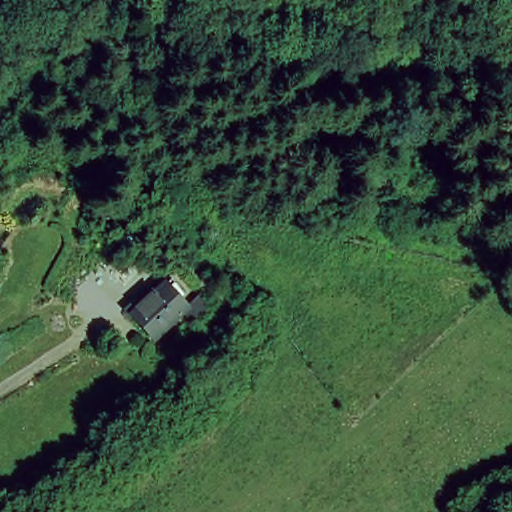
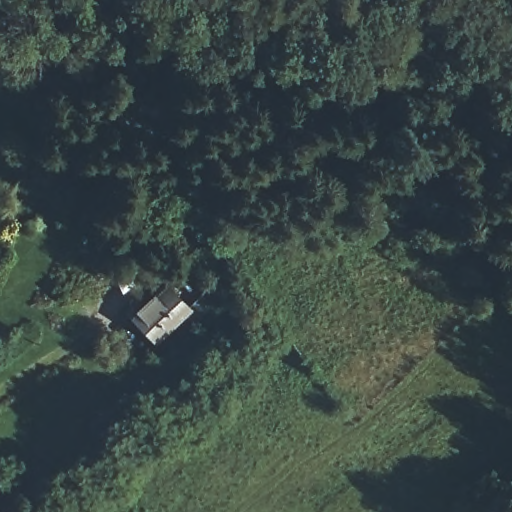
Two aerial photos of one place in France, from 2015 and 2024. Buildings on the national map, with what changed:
unchanged [(167,277),(195,313),(151,347),(126,313),(167,277)]

